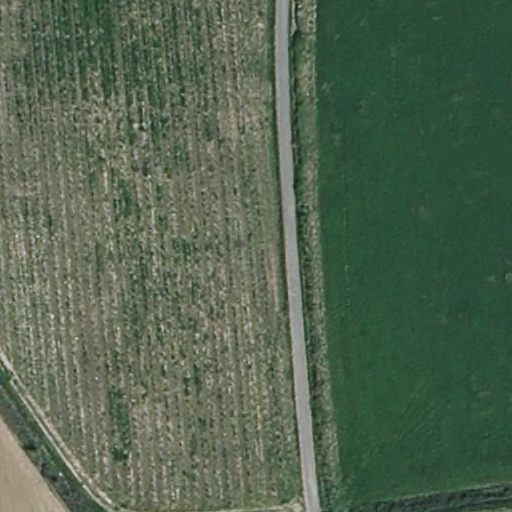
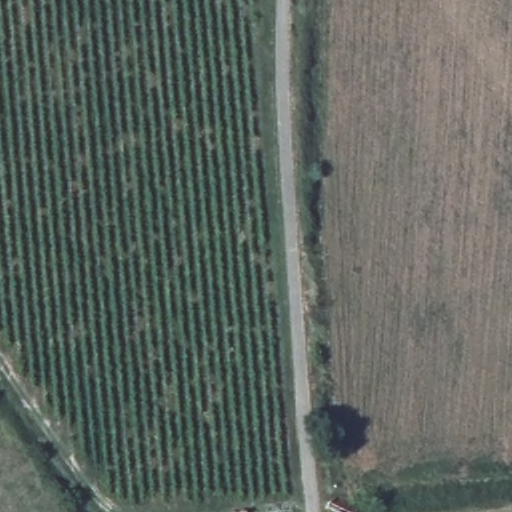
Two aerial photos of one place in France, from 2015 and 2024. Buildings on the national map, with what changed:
[]

